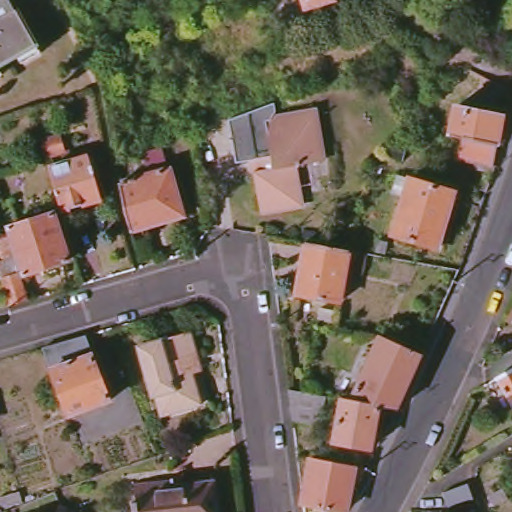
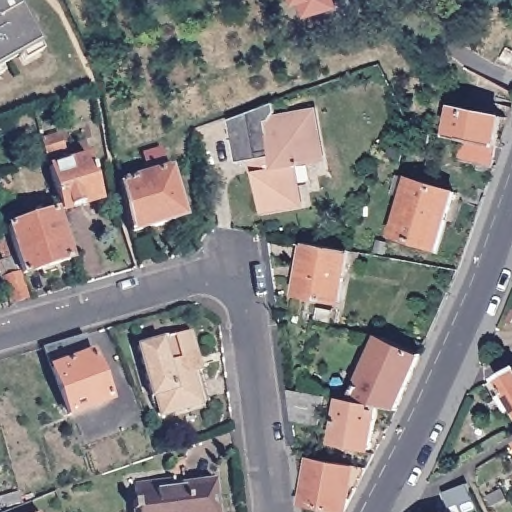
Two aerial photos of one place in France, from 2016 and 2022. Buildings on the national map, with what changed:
unchanged [(20,6),(22,6),(42,41),(47,48),(28,59),(24,52),(4,63),(9,71),(0,77),(0,0),(17,0),(20,6)]
unchanged [(465,133),(450,130),(457,100),(504,110),(497,140),(493,162),(459,155),(465,133)]
unchanged [(280,118),(275,123),(280,125),(317,116),(327,164),(298,170),(307,209),(267,216),(259,177),(254,178),(252,165),(239,168),(232,131),(277,114),(280,118)]
unchanged [(65,151),(48,155),(43,136),(60,132),(65,151)]
unchanged [(103,197),(63,207),(52,169),(51,165),(92,154),(103,197)]
unchanged [(185,215),(131,229),(130,227),(124,200),(120,180),(172,166),(185,215)]
unchanged [(438,248),(395,235),(407,197),(393,193),(399,174),(413,179),(456,192),(438,248)]
unchanged [(70,258),(22,273),(7,226),(55,211),(70,258)]
unchanged [(296,294),(305,242),(350,250),(340,302),(296,294)]
unchanged [(3,277),(18,272),(26,296),(11,301),(3,277)]
unchanged [(207,373),(197,376),(207,406),(165,417),(160,399),(157,399),(141,349),(195,334),(207,373)]
unchanged [(427,354),(402,409),(385,406),(373,404),(357,401),(387,336),(427,354)]
unchanged [(75,423),(49,356),(90,344),(115,409),(75,423)]
unchanged [(512,370),(512,402),(498,377),(512,370)]
unchanged [(322,412),(320,426),(294,421),(290,390),(299,391),(320,395),(317,411),(322,412)]
unchanged [(340,441),(347,399),(353,400),(357,401),(373,404),(385,406),(377,448),(340,441)]
unchanged [(298,490),(300,488),(303,483),(305,477),(306,469),(305,467),(310,457),(363,467),(342,512),(300,503),(298,490)]
unchanged [(216,483),(219,512),(130,512),(130,507),(134,506),(132,486),(184,481),(184,486),(216,483)]
unchanged [(463,484),(468,499),(444,508),(438,493),(463,484)]
unchanged [(512,496),(512,497),(495,505),(490,494),(506,486),(512,496)]

